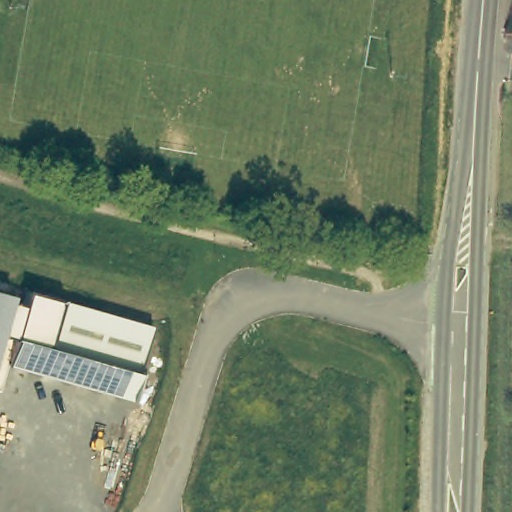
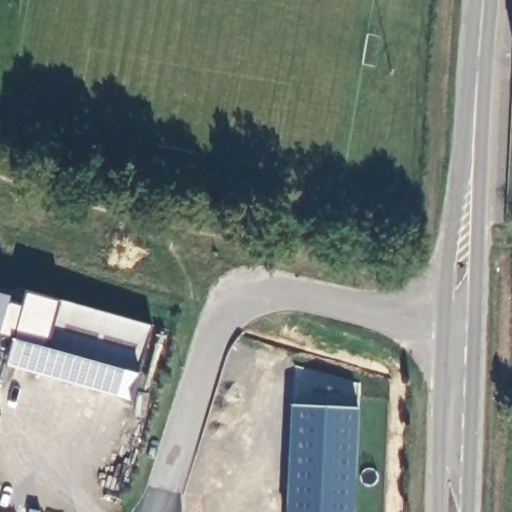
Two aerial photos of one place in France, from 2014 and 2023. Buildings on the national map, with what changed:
unchanged [(133,402),(7,367),(0,386),(0,293),(13,297),(11,305),(24,308),(28,293),(61,302),(152,327),(141,375),(133,402)]
new [(287,512),(293,405),(360,408),(356,512),(287,512)]

